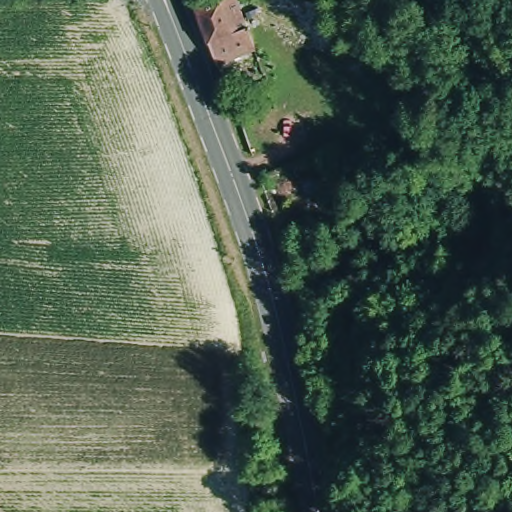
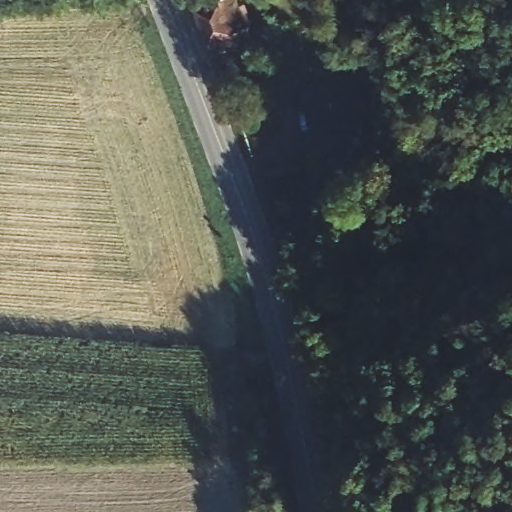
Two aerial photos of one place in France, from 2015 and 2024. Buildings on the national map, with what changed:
unchanged [(252,44),(247,45),(245,40),(210,51),(192,0),(237,0),(252,44)]
unchanged [(295,177),(310,217),(276,233),(262,188),(295,177)]

